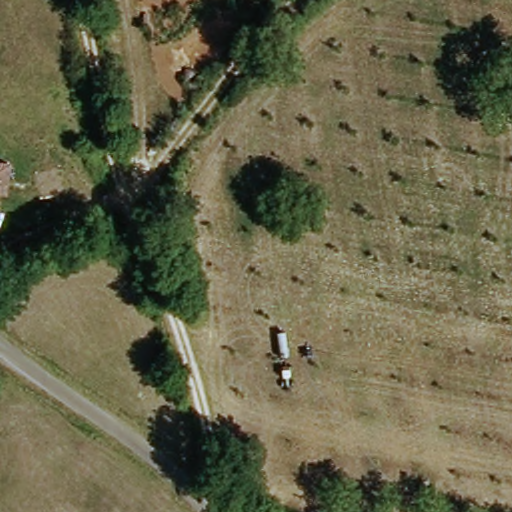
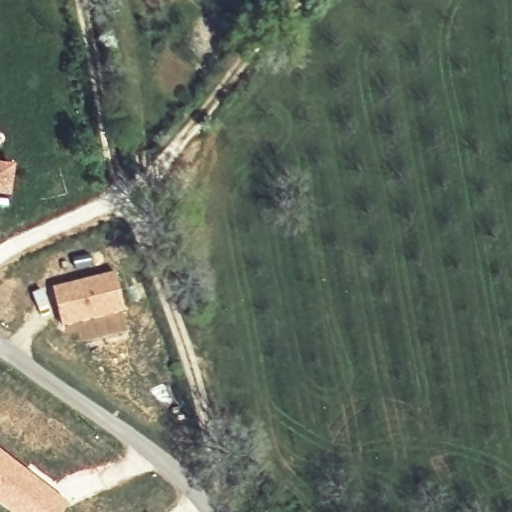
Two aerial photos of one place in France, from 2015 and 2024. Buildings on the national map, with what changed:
unchanged [(9,195),(0,194),(0,167),(12,169),(9,195)]
new [(76,340),(75,333),(65,336),(62,327),(52,286),(115,272),(124,311),(127,329),(76,340)]
new [(58,512),(13,512),(0,502),(0,447),(67,500),(58,512)]

